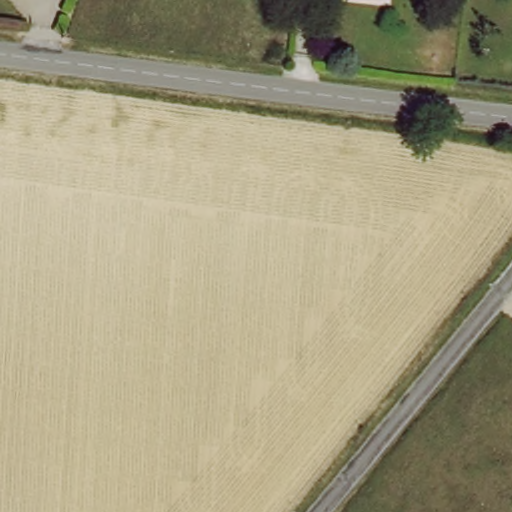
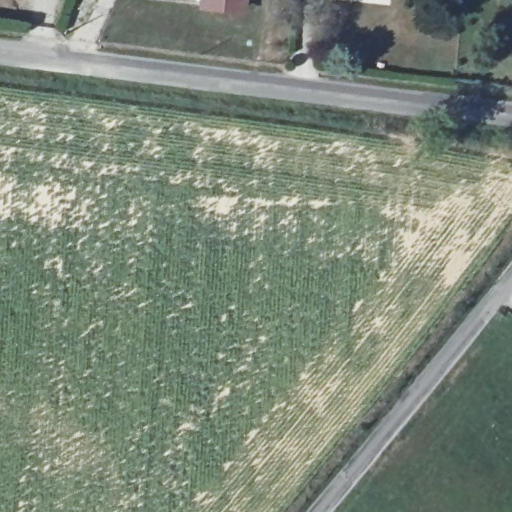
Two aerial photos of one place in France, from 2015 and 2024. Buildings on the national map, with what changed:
new [(200,9),(200,0),(248,0),(247,15),(200,9)]

